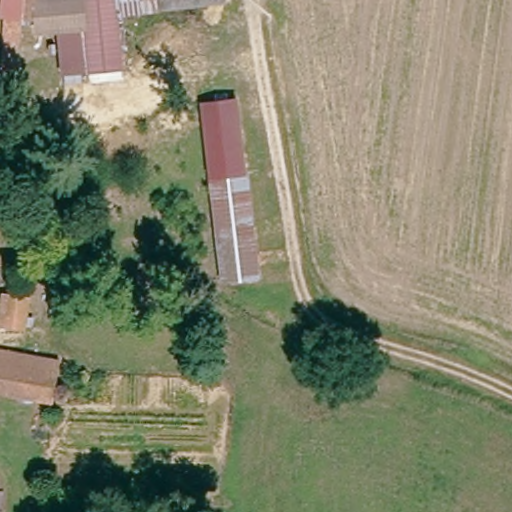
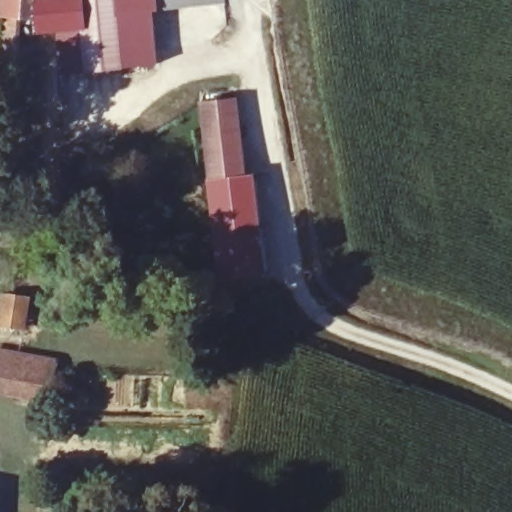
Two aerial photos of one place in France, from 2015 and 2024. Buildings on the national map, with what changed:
unchanged [(123,37),(126,68),(62,73),(61,48),(60,30),(37,31),(38,14),(20,14),(20,34),(19,92),(6,92),(7,25),(7,11),(2,11),(3,0),(228,0),(201,3),(179,6),(121,12),(123,37)]
new [(158,64),(126,68),(123,37),(121,12),(151,9),(158,64)]
unchanged [(264,278),(255,280),(229,283),(206,105),(228,102),(241,100),(264,278)]
unchanged [(7,287),(30,290),(27,324),(3,321),(7,287)]
unchanged [(62,357),(61,370),(58,397),(0,392),(0,351),(62,357)]

